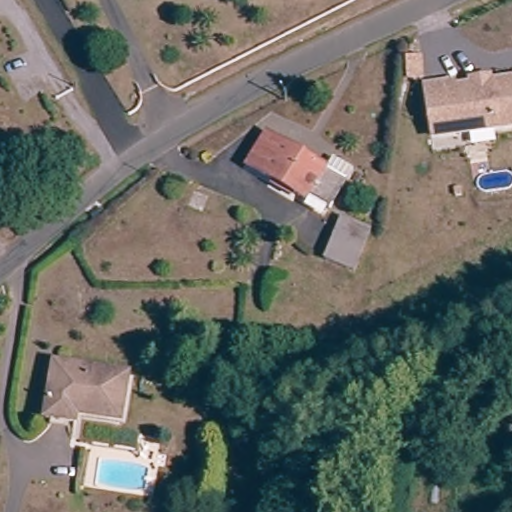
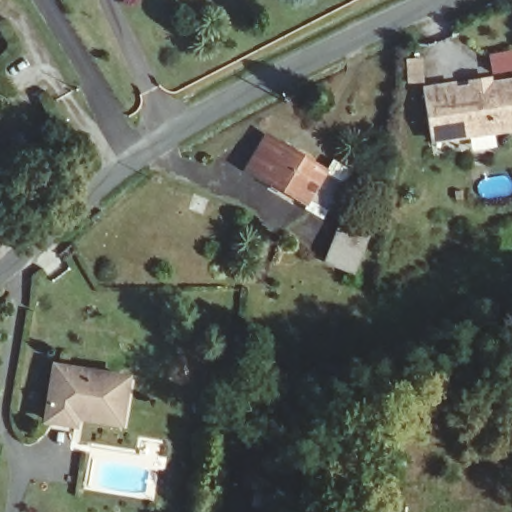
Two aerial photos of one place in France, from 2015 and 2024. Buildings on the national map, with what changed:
unchanged [(432,123),(429,88),(463,85),(464,90),(479,88),(479,83),(496,81),(497,86),(512,85),(512,131),(454,137),(434,139),(432,123)]
unchanged [(332,218),(310,206),(247,169),(264,138),(328,175),(339,155),(339,156),(354,164),(343,183),(350,187),(332,218)]
unchanged [(335,269),(339,228),(364,231),(359,272),(335,269)]
unchanged [(62,371),(134,379),(129,418),(70,411),(69,424),(55,423),(62,371)]
unchanged [(214,396),(216,372),(255,376),(253,400),(214,396)]

